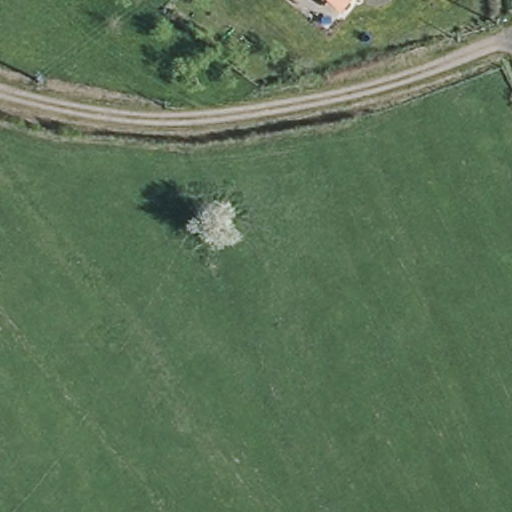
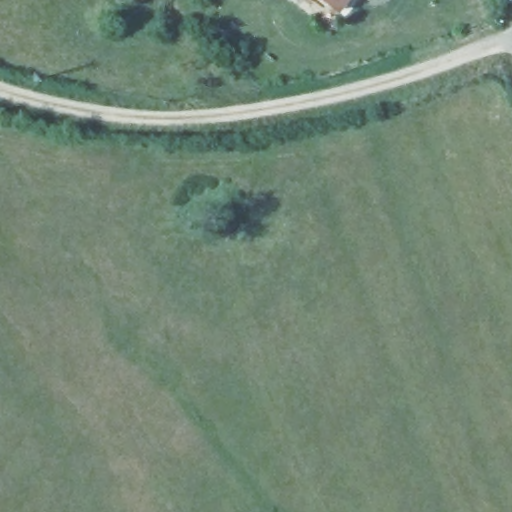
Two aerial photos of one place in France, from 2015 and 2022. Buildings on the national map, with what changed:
unchanged [(325,2),(322,0),(326,0),(325,2)]
unchanged [(343,11),(331,0),(352,0),(343,11)]

